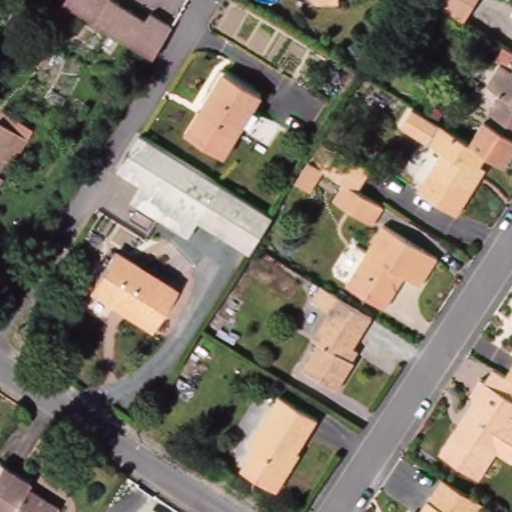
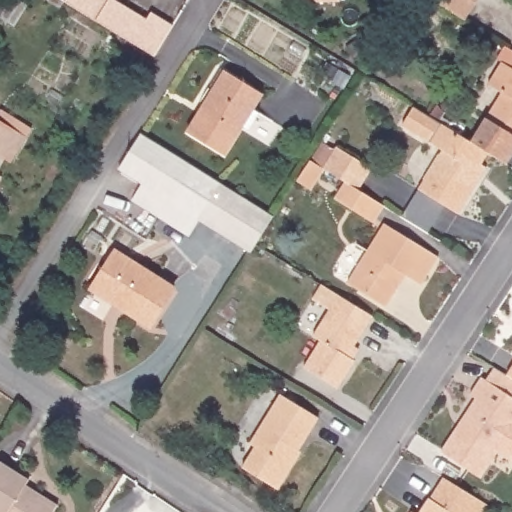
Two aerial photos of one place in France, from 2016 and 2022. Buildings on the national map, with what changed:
unchanged [(13,0),(20,0),(28,5),(15,26),(2,18),(13,0)]
unchanged [(122,9),(126,2),(148,15),(130,45),(129,45),(54,0),(107,0),(122,9)]
unchanged [(341,6),(318,7),(311,0),(340,0),(341,6)]
unchanged [(457,13),(437,0),(466,0),(457,13)]
unchanged [(489,84),(502,62),(512,68),(512,154),(506,164),(489,153),(472,142),(503,92),(489,84)]
unchanged [(251,127),(245,123),(225,155),(189,132),(226,71),(263,93),(253,109),(260,113),(251,127)]
unchanged [(5,164),(0,173),(0,117),(2,114),(33,133),(27,142),(12,168),(5,164)]
unchanged [(480,180),(459,213),(420,189),(443,150),(429,141),(441,123),(472,142),(489,153),(482,164),(487,168),(480,180)]
unchanged [(142,134),(274,216),(275,216),(257,245),(252,253),(200,219),(190,235),(133,199),(143,184),(120,169),(142,134)]
unchanged [(340,203),(351,187),(328,173),(342,152),(377,173),(364,195),(389,211),(378,228),(340,203)]
unchanged [(315,195),(302,187),(316,165),(328,173),(315,195)]
unchanged [(2,182),(0,186),(0,181),(2,182)]
unchanged [(387,306),(348,283),(385,224),(439,257),(422,284),(407,275),(397,288),(387,306)]
unchanged [(116,256),(175,294),(151,332),(121,312),(92,294),(94,290),(116,256)]
unchanged [(356,361),(339,388),(305,367),(321,340),(314,336),(331,310),(313,299),(322,285),(339,295),(373,316),(355,346),(362,351),(356,361)]
unchanged [(442,451),(477,399),(471,395),(482,378),(486,380),(493,367),(498,370),(512,379),(512,430),(481,476),(442,451)]
unchanged [(255,446),(251,443),(281,394),(319,417),(296,456),(298,458),(278,489),(243,467),(255,446)]
unchanged [(30,481),(27,484),(58,505),(54,512),(0,512),(0,467),(2,463),(30,481)]
unchanged [(493,508),(491,512),(476,512),(445,512),(426,499),(442,476),(493,508)]
unchanged [(445,512),(417,512),(426,499),(445,512)]

